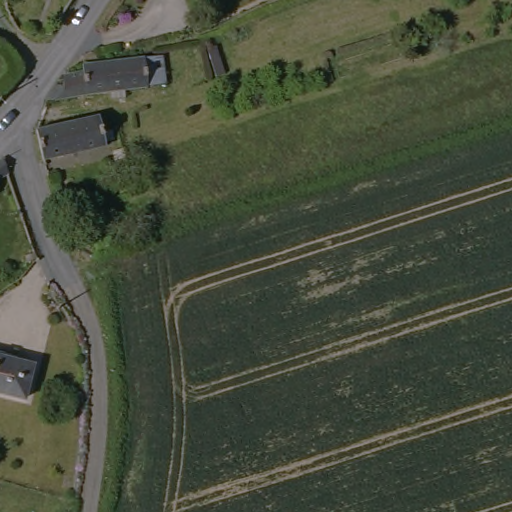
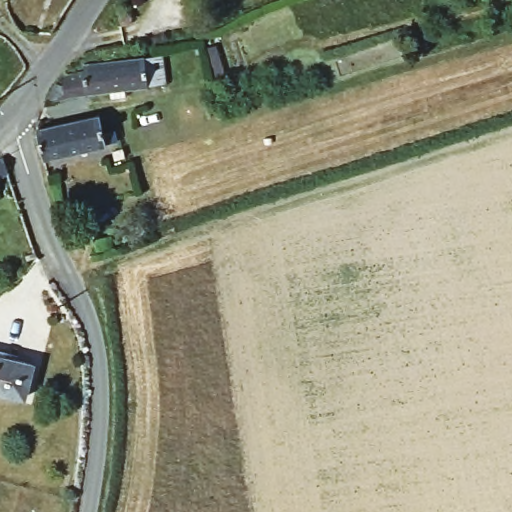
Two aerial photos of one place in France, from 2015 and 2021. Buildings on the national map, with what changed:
unchanged [(90,65),(151,53),(158,81),(51,107),(60,91),(67,92),(75,78),(92,74),(90,65)]
unchanged [(100,115),(103,127),(106,144),(44,159),(36,131),(100,115)]
unchanged [(12,170),(0,177),(0,158),(3,155),(12,170)]
unchanged [(1,190),(0,191),(0,188),(1,190)]
unchanged [(0,394),(0,357),(31,364),(22,400),(0,394)]

